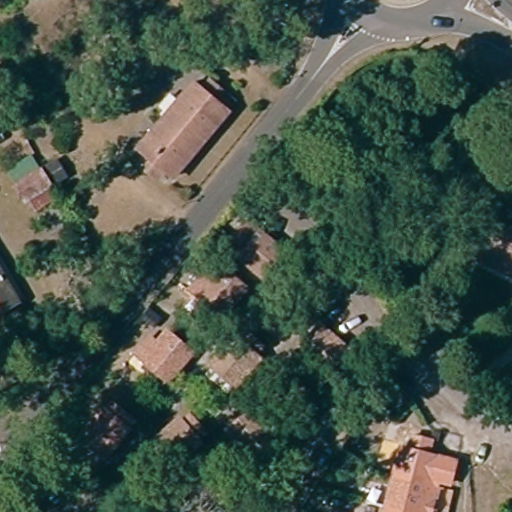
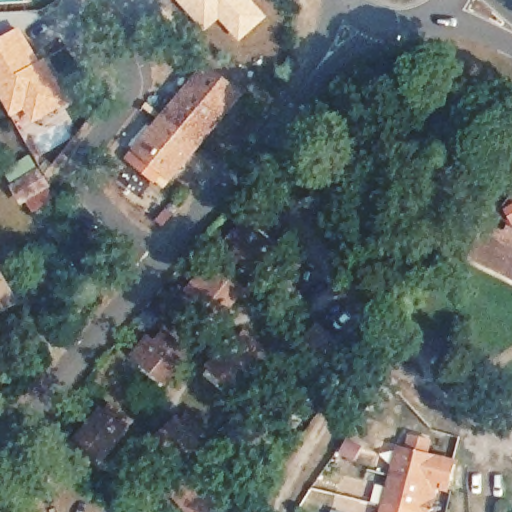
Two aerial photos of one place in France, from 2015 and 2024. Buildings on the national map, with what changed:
new [(239,42),(220,21),(207,32),(177,0),(254,0),(267,16),(239,42)]
new [(41,59),(47,56),(72,101),(19,131),(0,98),(0,37),(21,26),(41,59)]
unchanged [(222,113),(223,114),(168,178),(162,172),(154,181),(127,158),(190,85),(197,91),(204,82),(229,104),(222,113)]
unchanged [(45,192),(24,205),(19,195),(14,197),(6,181),(10,179),(2,165),(24,152),(45,192)]
unchanged [(54,172),(45,177),(37,165),(46,159),(54,172)]
unchanged [(488,265),(470,256),(482,227),(501,237),(506,228),(512,231),(512,276),(488,265)]
unchanged [(251,275),(226,254),(247,229),(272,250),(277,254),(256,279),(251,275)]
unchanged [(402,298),(388,292),(406,256),(420,262),(402,298)]
unchanged [(186,295),(178,288),(193,271),(201,277),(211,265),(236,286),(215,311),(211,316),(186,295)]
unchanged [(0,281),(12,302),(0,309),(0,281)]
unchanged [(320,372),(295,352),(315,327),(341,347),(346,352),(325,377),(320,372)]
unchanged [(131,361),(123,353),(138,336),(146,342),(156,330),(181,351),(160,376),(156,381),(131,361)]
unchanged [(204,371),(209,365),(229,340),(234,344),(242,335),(257,348),(250,357),(254,361),(233,386),(229,391),(204,371)]
unchanged [(282,421),(277,416),(257,390),(283,370),(303,395),(307,401),(282,421)]
unchanged [(73,444),(77,438),(97,412),(101,416),(109,406),(126,418),(118,428),(122,432),(103,457),(99,463),(73,444)]
unchanged [(146,438),(151,433),(175,412),(179,416),(187,408),(202,423),(192,432),(197,436),(172,457),(167,462),(146,438)]
unchanged [(249,462),(244,457),(224,432),(250,412),(270,437),(274,442),(249,462)]
unchanged [(396,447),(405,448),(409,432),(426,435),(422,452),(452,460),(447,481),(436,478),(433,486),(432,486),(426,512),(417,512),(381,512),(396,447)]
unchanged [(213,512),(204,512),(204,511),(182,487),(207,466),(229,491),(233,496),(213,512)]

